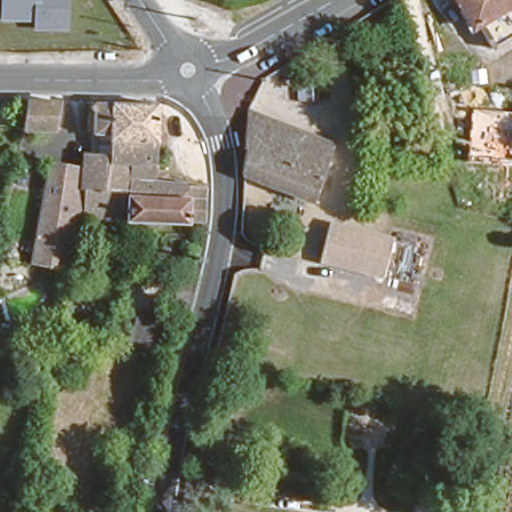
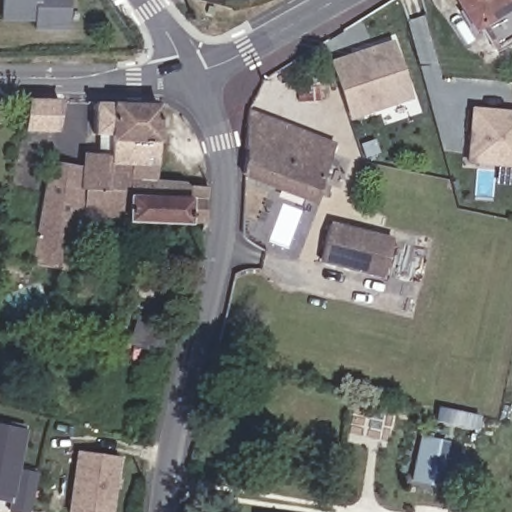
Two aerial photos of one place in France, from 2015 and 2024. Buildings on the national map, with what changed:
unchanged [(67,32),(32,30),(32,24),(0,23),(0,12),(1,0),(68,0),(67,32)]
unchanged [(458,0),(512,0),(512,33),(483,48),(458,0)]
new [(392,39),(412,100),(349,121),(329,60),(392,39)]
unchanged [(21,128),(28,95),(64,96),(54,132),(21,128)]
unchanged [(86,217),(90,189),(91,181),(95,151),(111,151),(114,132),(97,131),(100,103),(120,104),(165,105),(163,120),(163,122),(161,141),(158,166),(157,177),(156,186),(185,189),(217,192),(213,229),(152,223),(113,220),(86,217)]
new [(512,110),(512,167),(465,162),(468,106),(512,110)]
unchanged [(247,176),(254,109),(327,136),(306,196),(247,176)]
unchanged [(62,270),(45,267),(26,265),(50,167),(83,172),(81,181),(80,188),(63,270),(62,270)]
unchanged [(320,259),(325,235),(327,226),(389,239),(382,274),(320,259)]
new [(13,497),(0,495),(0,426),(26,431),(13,497)]
new [(437,485),(409,479),(419,435),(447,441),(437,485)]
new [(112,512),(67,512),(75,450),(119,456),(112,512)]

